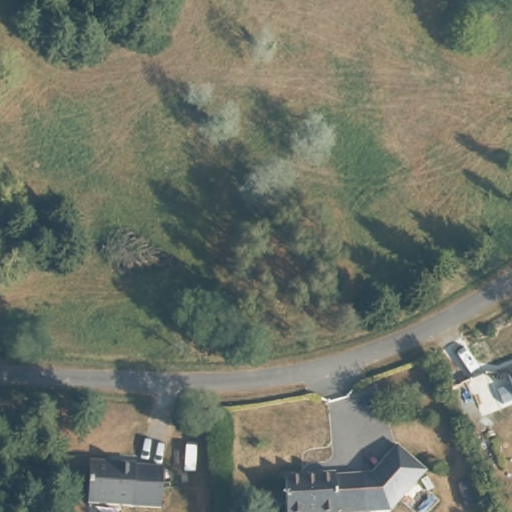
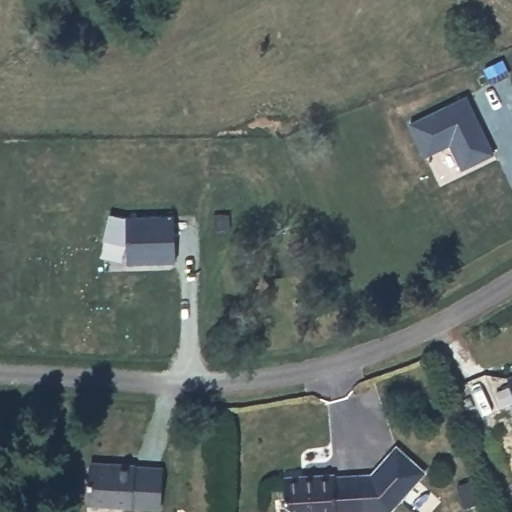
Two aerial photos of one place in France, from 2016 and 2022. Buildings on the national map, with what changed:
new [(467,90),(497,158),(462,175),(450,147),(438,152),(439,156),(422,163),(404,122),(467,90)]
new [(125,215),(175,216),(174,262),(126,261),(127,243),(103,236),(110,211),(125,215)]
unchanged [(508,378),(512,376),(512,391),(508,378)]
unchanged [(397,449),(426,473),(393,511),(381,512),(365,512),(364,510),(363,488),(362,479),(371,478),(397,449)]
unchanged [(92,461),(117,462),(117,459),(137,460),(137,462),(164,463),(163,502),(90,499),(92,461)]
unchanged [(339,512),(287,512),(286,475),(335,471),(337,475),(362,474),(362,479),(364,510),(339,512)]

